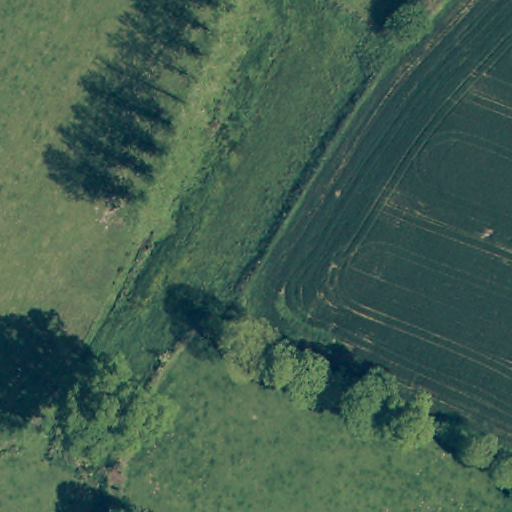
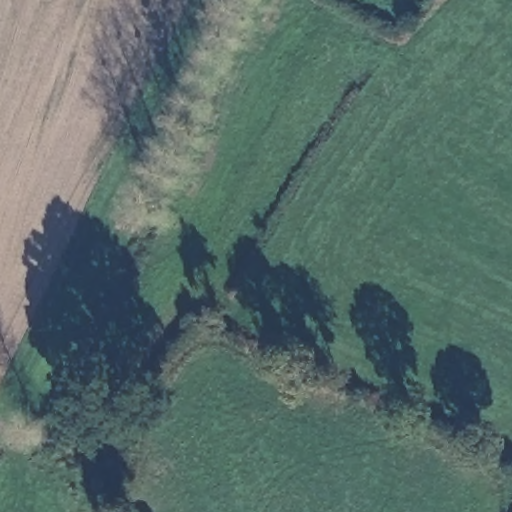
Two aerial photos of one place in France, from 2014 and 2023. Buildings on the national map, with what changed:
[]

